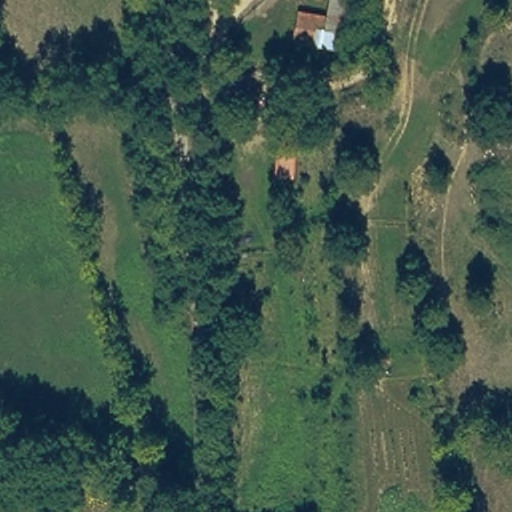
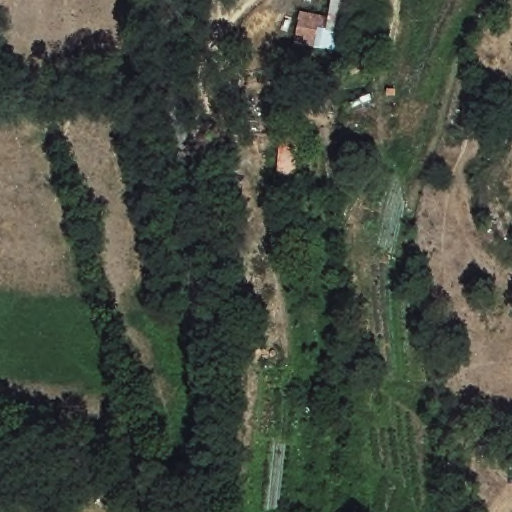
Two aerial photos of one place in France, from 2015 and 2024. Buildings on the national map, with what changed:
unchanged [(330,13),(333,0),(365,0),(361,48),(295,41),(301,9),(330,13)]
unchanged [(301,129),(295,179),(279,176),(283,127),(301,129)]

